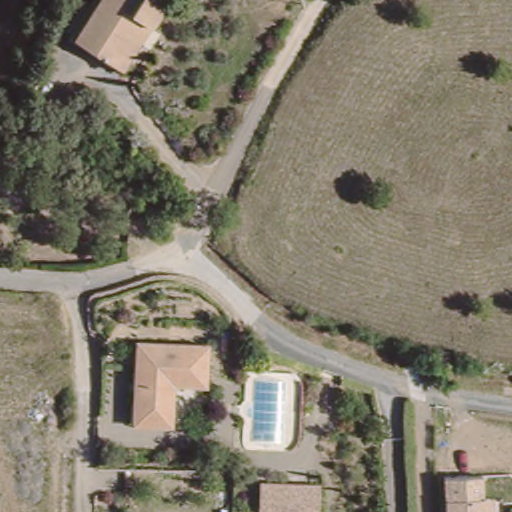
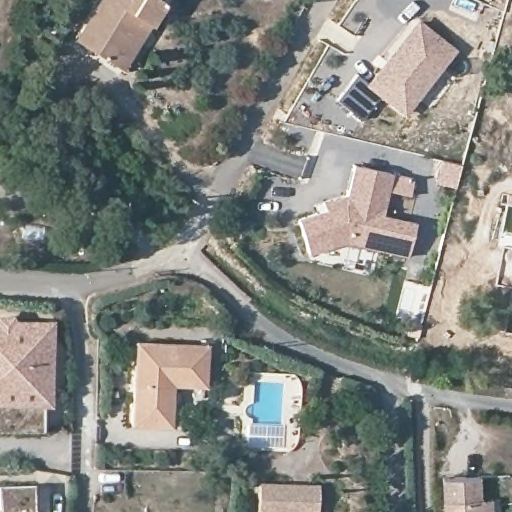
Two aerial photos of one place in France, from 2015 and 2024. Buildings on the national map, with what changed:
unchanged [(103,67),(73,38),(108,0),(144,0),(146,2),(148,0),(153,0),(166,14),(144,39),(111,75),(103,67)]
new [(404,116),(379,97),(361,119),(336,99),(357,74),(368,81),(418,19),(457,50),(404,116)]
new [(394,174),(384,215),(417,222),(409,258),(348,244),(309,255),(301,218),(327,209),(324,202),(348,194),(354,165),(394,174)]
new [(44,407),(43,432),(0,432),(0,315),(14,315),(17,320),(54,321),(54,408),(44,407)]
unchanged [(211,347),(206,391),(173,388),(168,425),(131,423),(140,342),(211,347)]
unchanged [(313,511),(263,507),(264,478),(315,481),(313,511)]
new [(8,483),(43,481),(45,512),(0,512),(0,508),(9,508),(8,483)]
unchanged [(497,512),(449,512),(449,498),(498,495),(497,512)]

